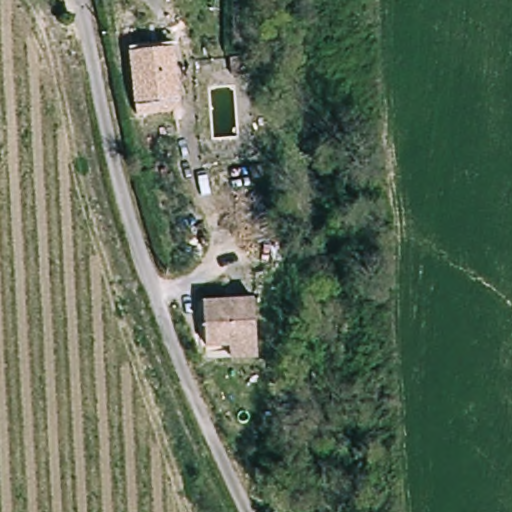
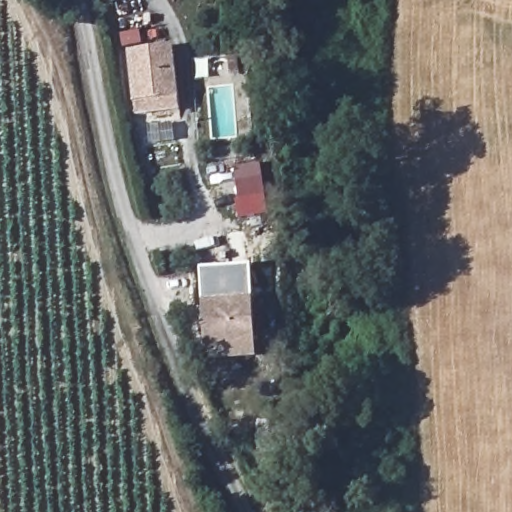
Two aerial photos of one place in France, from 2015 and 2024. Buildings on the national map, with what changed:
unchanged [(129,50),(175,44),(181,111),(136,117),(129,50)]
new [(239,199),(233,169),(261,164),(269,213),(238,220),(236,200),(239,199)]
unchanged [(203,295),(233,295),(233,300),(257,301),(258,361),(233,361),(233,347),(208,346),(203,295)]

